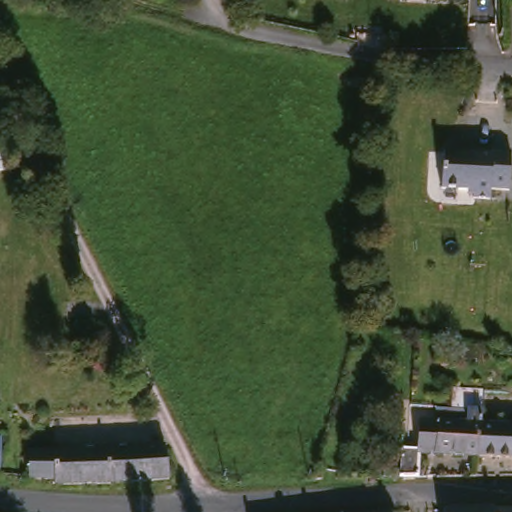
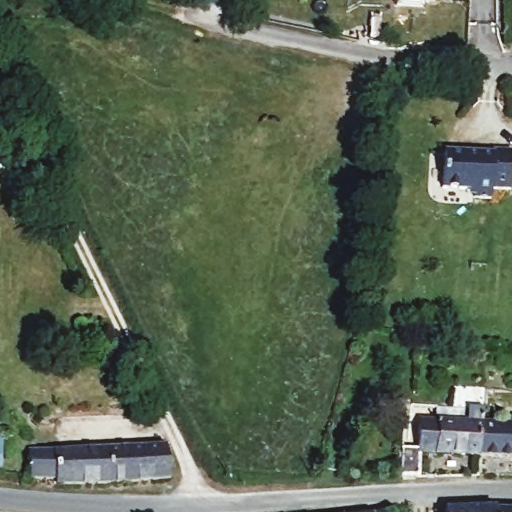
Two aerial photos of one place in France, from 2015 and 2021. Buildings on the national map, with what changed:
unchanged [(405,0),(439,0),(438,6),(405,6),(405,0)]
unchanged [(489,189),(489,199),(468,198),(468,189),(440,189),(439,150),(508,151),(507,190),(489,189)]
unchanged [(0,192),(0,175),(12,177),(10,191),(9,194),(3,193),(0,192)]
unchanged [(409,475),(390,474),(392,440),(411,441),(412,421),(455,422),(457,404),(443,404),(445,384),(475,386),(474,396),(473,405),(473,407),(472,412),(472,419),(468,453),(410,452),(409,475)]
unchanged [(472,419),(512,422),(512,455),(468,453),(472,419)]
unchanged [(175,445),(177,481),(157,482),(99,484),(96,448),(175,445)]
unchanged [(38,485),(38,479),(17,479),(14,449),(96,448),(99,484),(38,485)]
unchanged [(374,511),(391,508),(392,512),(363,512),(374,511)]
unchanged [(445,511),(494,512),(445,512),(445,511)]

